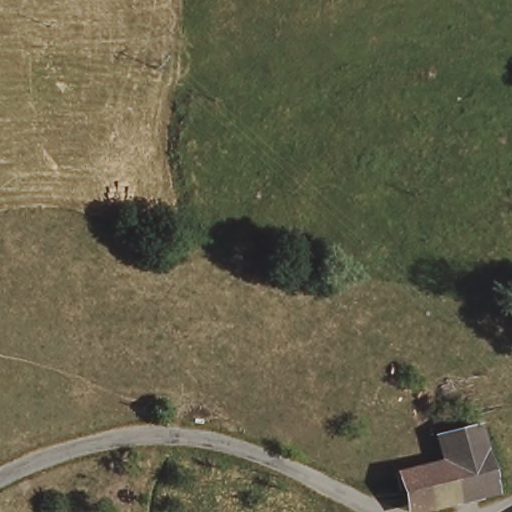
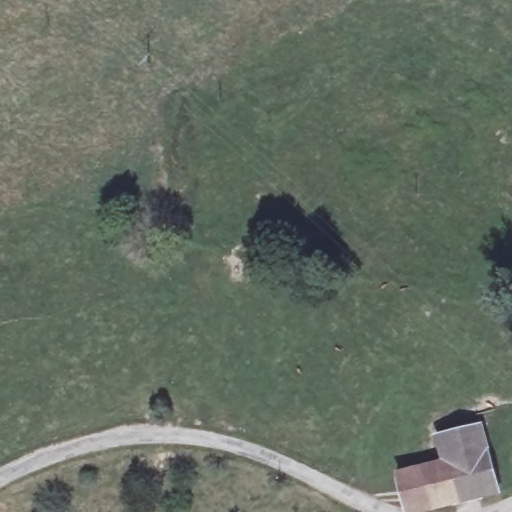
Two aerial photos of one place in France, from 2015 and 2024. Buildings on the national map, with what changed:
unchanged [(452,453),(445,454),(440,429),(486,421),(490,447),(452,453)]
unchanged [(495,464),(495,469),(500,491),(502,497),(497,499),(495,500),(492,502),(481,507),(480,508),(476,509),(471,510),(464,512),(403,512),(396,489),(392,478),(388,467),(415,461),(417,461),(445,454),(452,453),(490,447),(495,464)]

